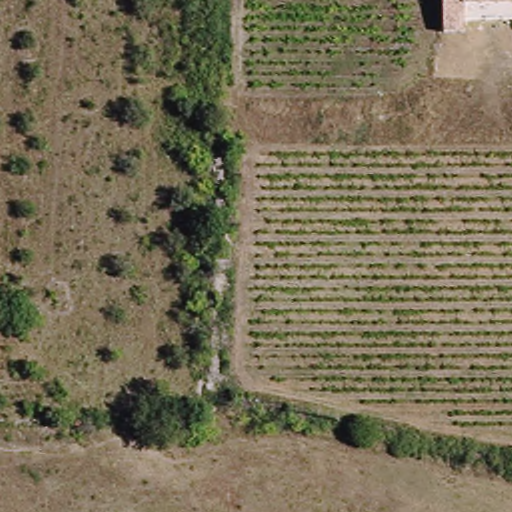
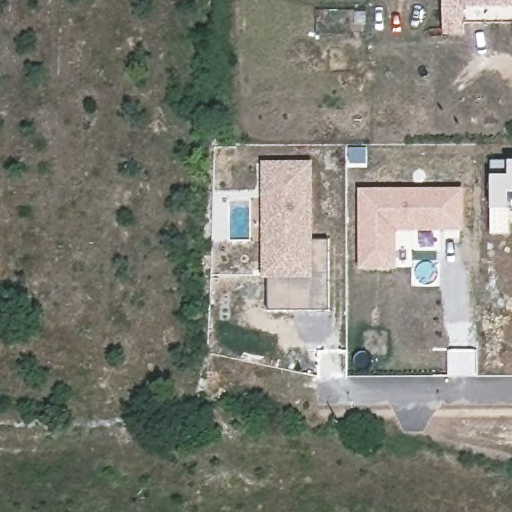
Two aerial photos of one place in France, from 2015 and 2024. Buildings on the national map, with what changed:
unchanged [(512,0),(512,26),(463,28),(463,36),(439,35),(439,0),(512,0)]
new [(511,209),(510,234),(490,234),(490,209),(490,173),(490,159),(506,159),(512,159),(512,194),(511,194),(511,209)]
new [(313,279),(268,279),(261,279),(261,161),(312,161),(313,242),(313,279)]
new [(357,189),(463,188),(464,232),(396,232),(397,269),(358,270),(357,189)]
new [(268,279),(313,279),(313,242),(328,240),(328,312),(268,310),(268,279)]

